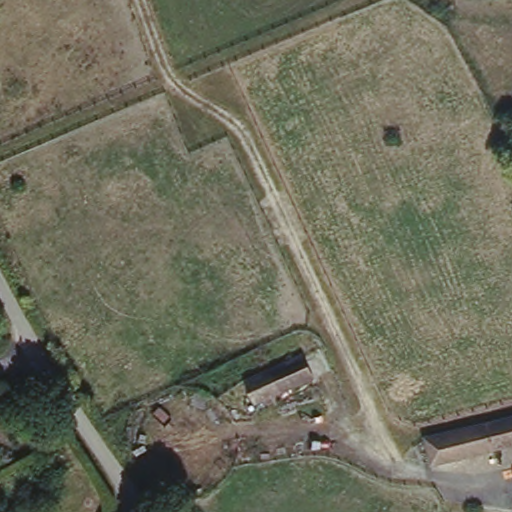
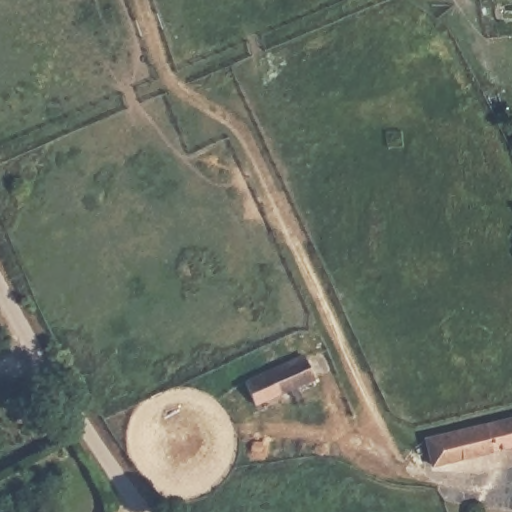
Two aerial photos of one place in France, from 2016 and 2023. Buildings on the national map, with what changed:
unchanged [(301,354),(314,375),(256,407),(244,384),(301,354)]
unchanged [(512,455),(437,474),(426,438),(512,415),(512,455)]

